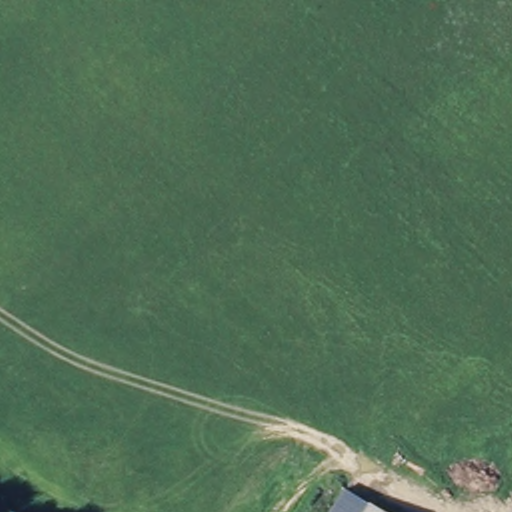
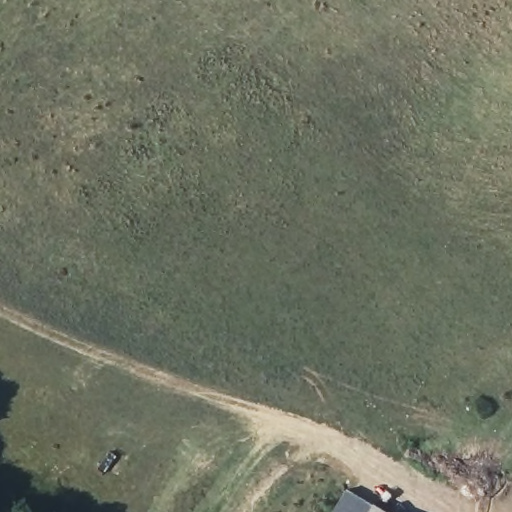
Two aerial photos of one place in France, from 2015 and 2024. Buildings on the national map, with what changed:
unchanged [(366,512),(333,512),(345,493),(370,507),(366,512)]
unchanged [(382,507),(390,512),(378,512),(382,507)]

